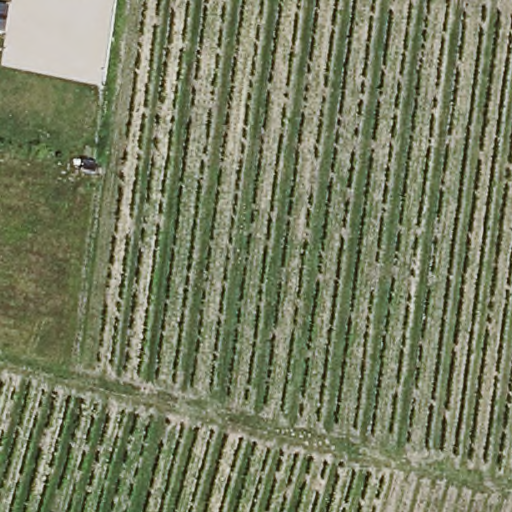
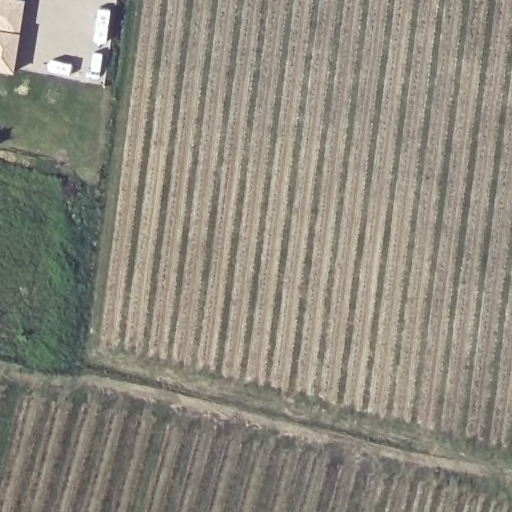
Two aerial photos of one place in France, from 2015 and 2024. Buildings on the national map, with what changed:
new [(12,75),(0,73),(0,0),(24,0),(12,75)]

